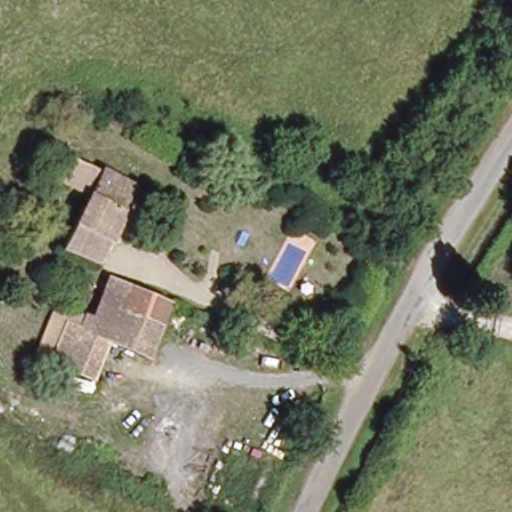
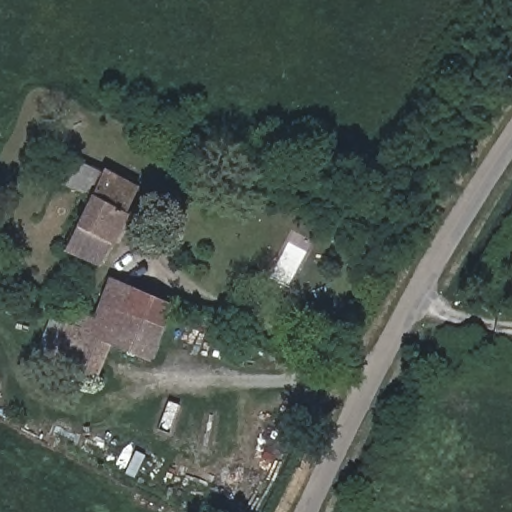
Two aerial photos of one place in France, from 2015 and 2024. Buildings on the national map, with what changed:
unchanged [(66,157),(107,175),(109,172),(139,190),(102,268),(68,256),(69,250),(42,237),(60,191),(50,185),(54,178),(66,157)]
unchanged [(94,317),(102,299),(104,295),(109,280),(167,303),(144,357),(88,334),(94,317)]

